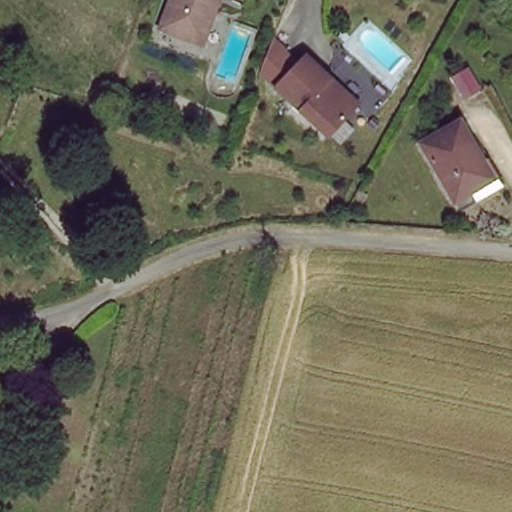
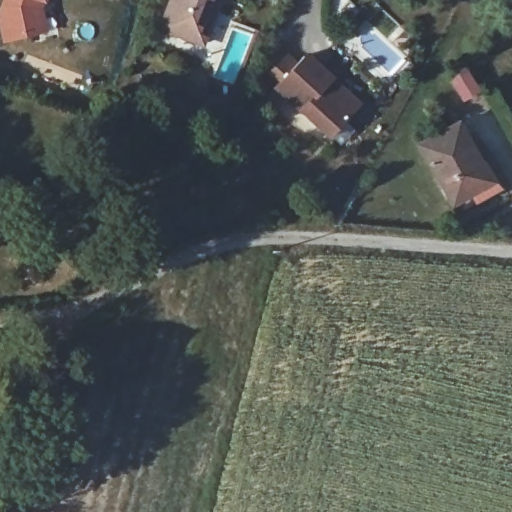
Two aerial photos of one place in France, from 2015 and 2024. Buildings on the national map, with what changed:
new [(41,10),(45,20),(51,18),(57,29),(48,33),(3,44),(0,35),(0,3),(1,0),(44,0),(42,6),(41,10)]
unchanged [(207,12),(197,40),(160,27),(171,0),(217,0),(213,12),(207,12)]
unchanged [(359,103),(329,135),(273,88),(302,55),(359,103)]
unchanged [(482,153),(477,156),(494,184),(460,203),(424,144),(463,121),(482,153)]

